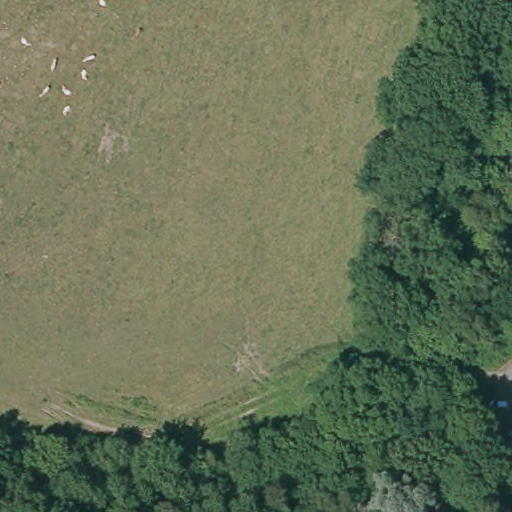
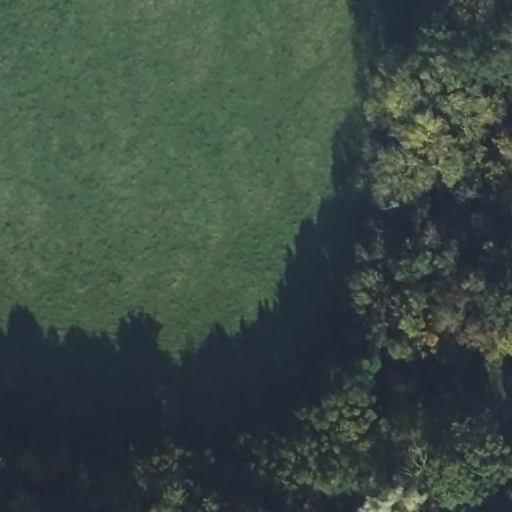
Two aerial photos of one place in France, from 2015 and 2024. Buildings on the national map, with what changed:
[]

